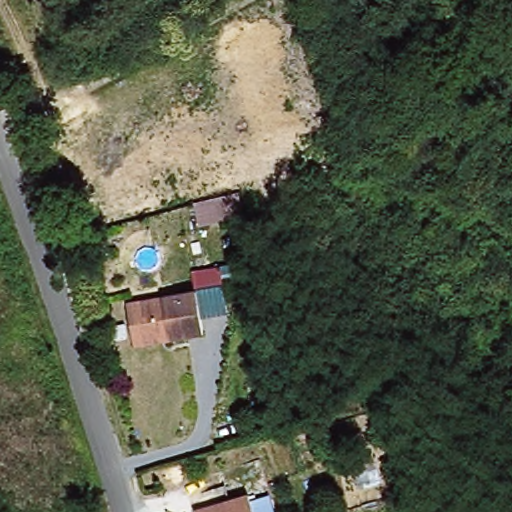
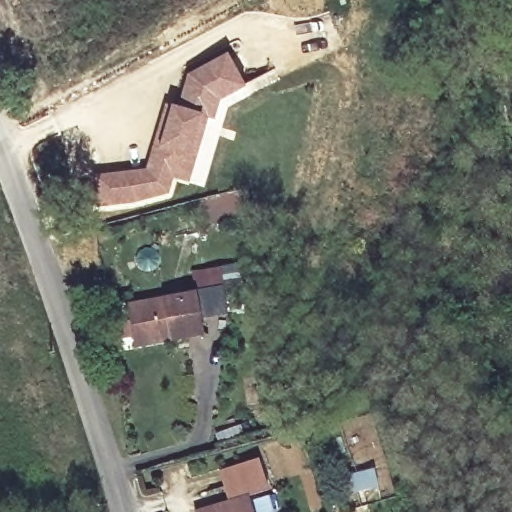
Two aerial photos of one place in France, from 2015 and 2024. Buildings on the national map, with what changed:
new [(171,177),(166,194),(132,204),(98,209),(93,178),(128,173),(145,169),(163,104),(170,105),(176,108),(186,74),(225,53),(242,86),(218,100),(212,119),(206,118),(200,140),(187,182),(171,177)]
unchanged [(209,330),(142,343),(135,303),(201,290),(209,330)]
unchanged [(250,496),(255,512),(205,512),(205,507),(250,496)]

